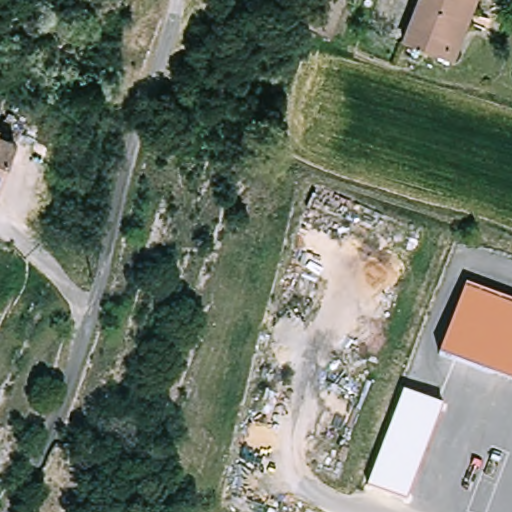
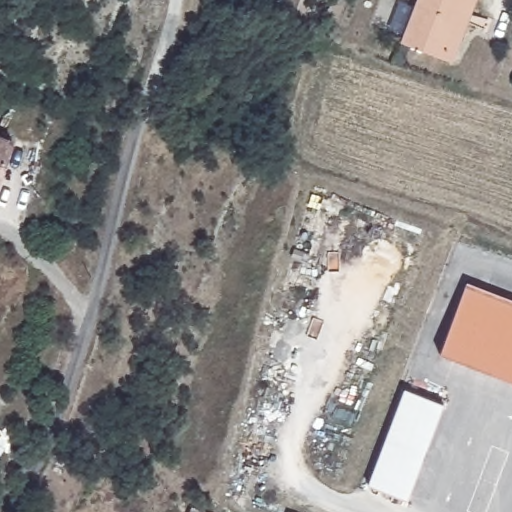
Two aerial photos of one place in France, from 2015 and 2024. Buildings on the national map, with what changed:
unchanged [(453,60),(405,41),(421,0),(477,0),(453,60)]
unchanged [(0,185),(0,139),(13,143),(0,185)]
unchanged [(473,365),(442,353),(467,285),(500,297),(473,365)]
unchanged [(473,365),(500,297),(512,301),(512,380),(473,365)]
unchanged [(406,501),(370,484),(402,390),(442,407),(406,501)]

